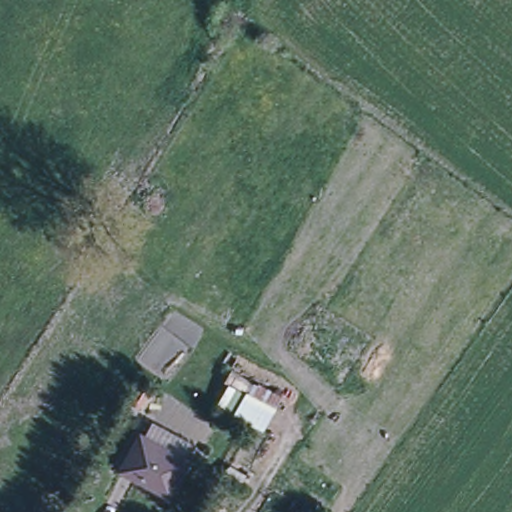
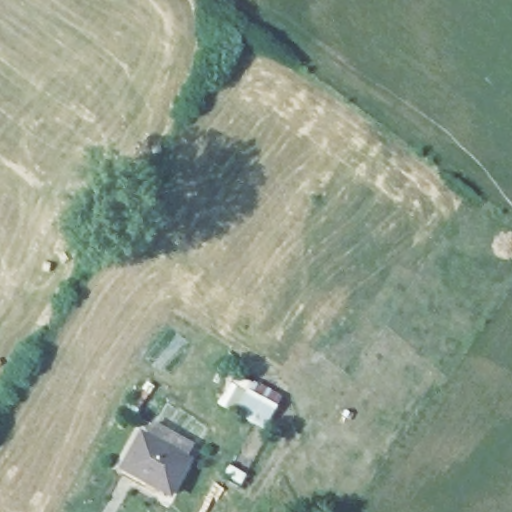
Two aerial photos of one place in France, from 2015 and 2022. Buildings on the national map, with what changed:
unchanged [(224,384),(220,383),(224,369),(282,395),(263,435),(213,407),(224,384)]
unchanged [(148,425),(186,446),(180,459),(183,461),(166,495),(120,470),(137,437),(141,439),(148,425)]

